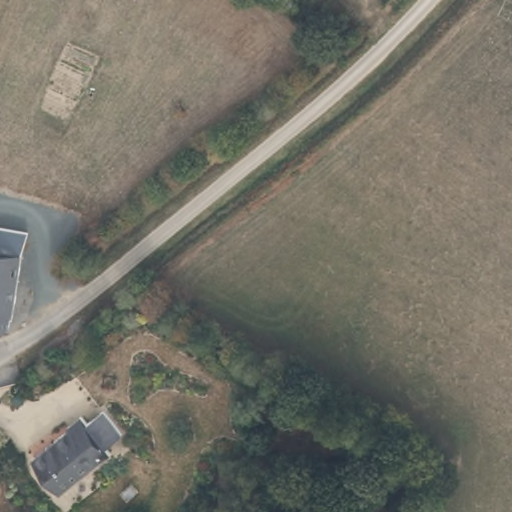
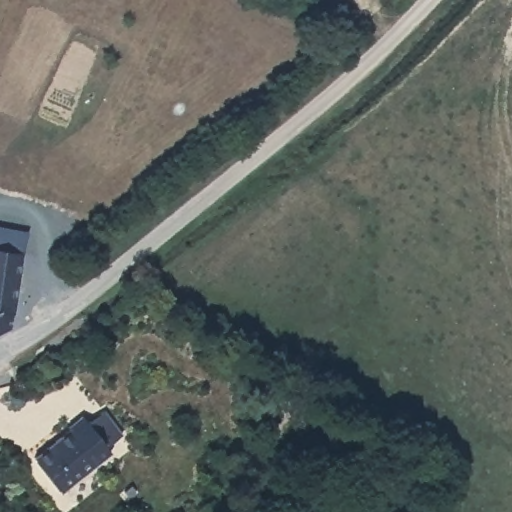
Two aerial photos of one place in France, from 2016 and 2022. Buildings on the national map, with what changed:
unchanged [(21,229),(19,251),(13,316),(0,322),(0,227),(21,229)]
unchanged [(105,422),(121,448),(103,458),(106,463),(91,472),(53,498),(28,460),(58,440),(59,434),(78,421),(88,435),(95,430),(105,422)]

